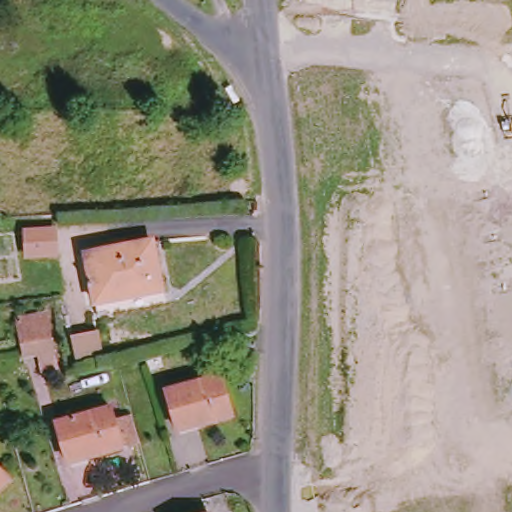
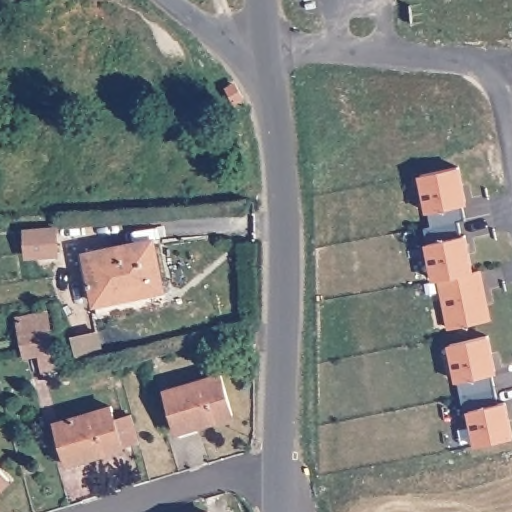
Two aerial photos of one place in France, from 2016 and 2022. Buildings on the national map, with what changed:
new [(419,175),(461,166),(470,204),(464,205),(465,219),(459,220),(462,236),(468,235),(475,271),(483,270),(493,320),(448,328),(438,278),(433,279),(426,243),(429,242),(426,227),(432,226),(430,211),(427,212),(419,175)]
unchanged [(151,236),(161,294),(90,308),(79,255),(151,236)]
unchanged [(38,369),(38,357),(21,357),(19,319),(48,317),(52,368),(38,369)]
new [(449,343),(491,335),(499,372),(493,373),(498,403),(508,402),(512,423),(512,437),(475,445),(468,410),(462,380),(457,381),(449,343)]
unchanged [(96,338),(97,355),(75,357),(75,340),(96,338)]
unchanged [(170,393),(221,376),(234,419),(181,433),(170,393)]
unchanged [(55,424),(115,409),(126,450),(68,466),(55,424)]
unchanged [(0,486),(0,476),(5,482),(0,486)]

